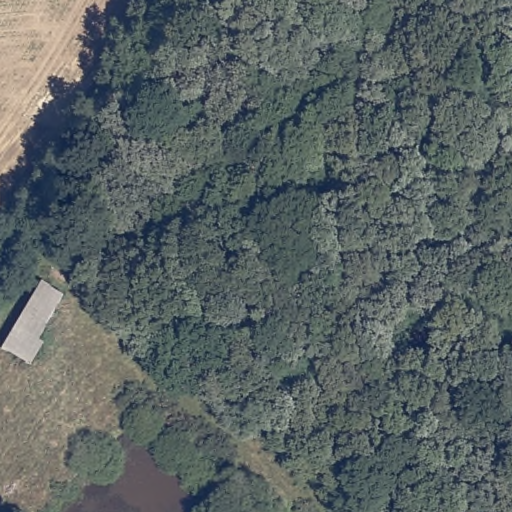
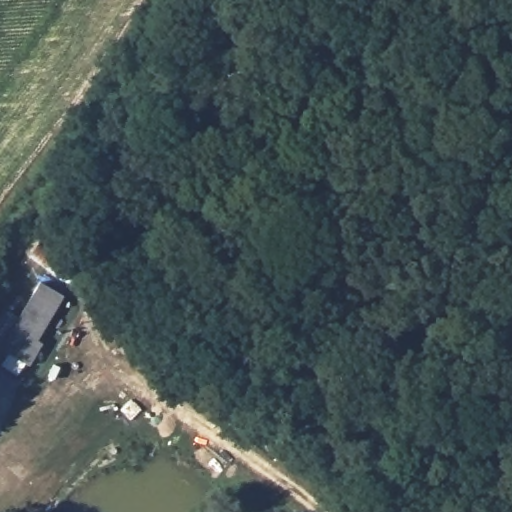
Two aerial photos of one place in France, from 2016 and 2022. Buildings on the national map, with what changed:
unchanged [(67,295),(41,336),(50,341),(33,367),(3,347),(43,279),(67,295)]

